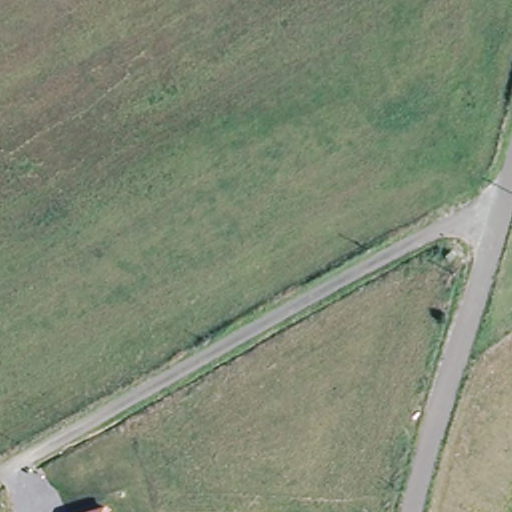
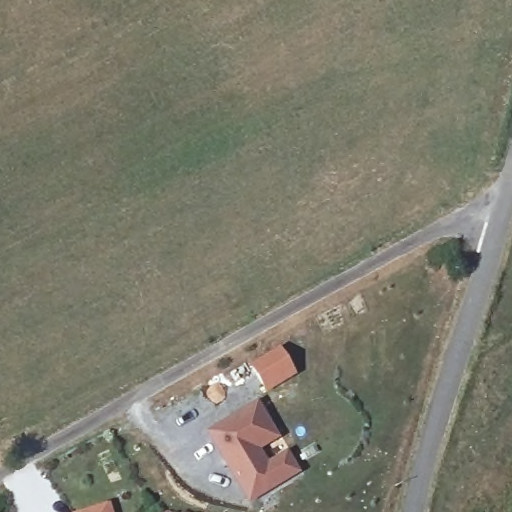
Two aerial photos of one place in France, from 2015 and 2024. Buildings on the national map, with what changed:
new [(257,403),(276,436),(256,447),(267,465),(286,453),(297,471),(250,498),(210,431),(257,403)]
unchanged [(83,512),(110,504),(111,512),(83,512)]

